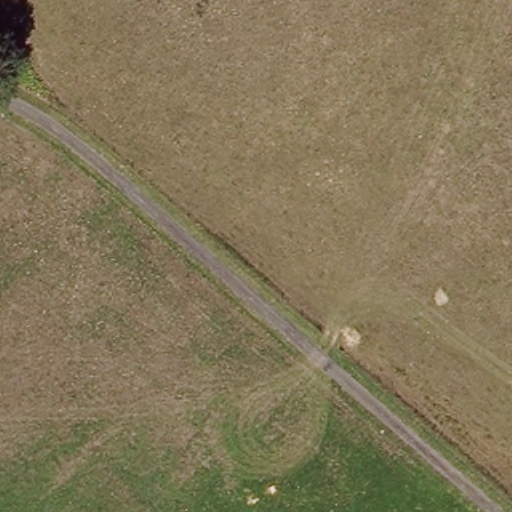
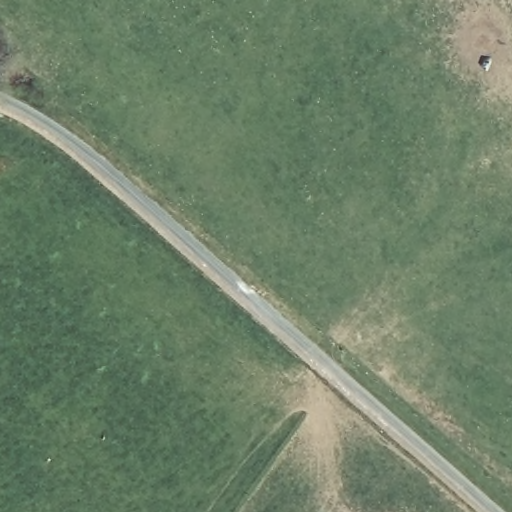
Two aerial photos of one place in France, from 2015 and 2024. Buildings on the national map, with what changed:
[]

